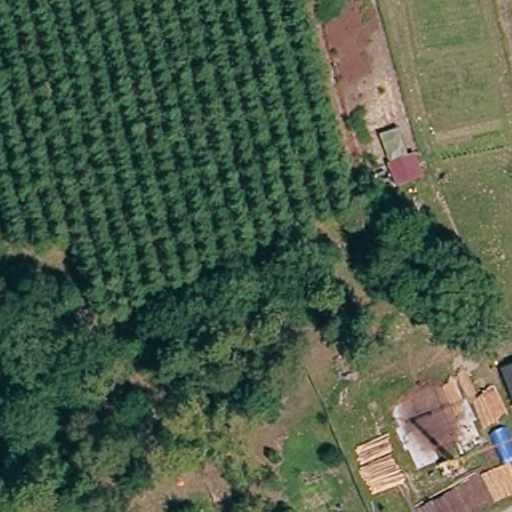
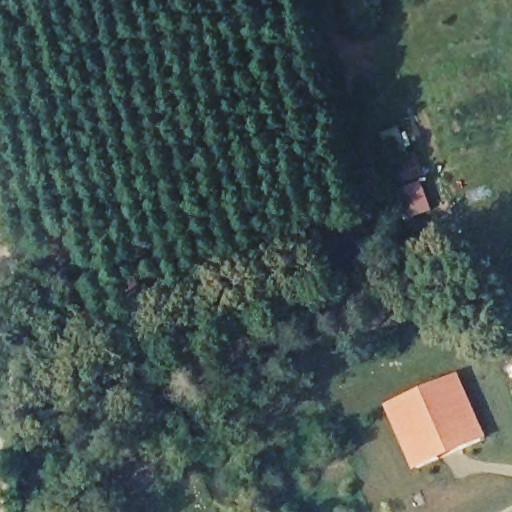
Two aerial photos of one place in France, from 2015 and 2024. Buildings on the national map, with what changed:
unchanged [(409,155),(415,152),(424,175),(398,184),(380,135),(399,128),(409,155)]
unchanged [(47,335),(47,298),(77,300),(75,340),(47,335)]
unchanged [(512,366),(512,394),(503,370),(512,366)]
new [(386,406),(459,375),(486,440),(415,472),(386,406)]

